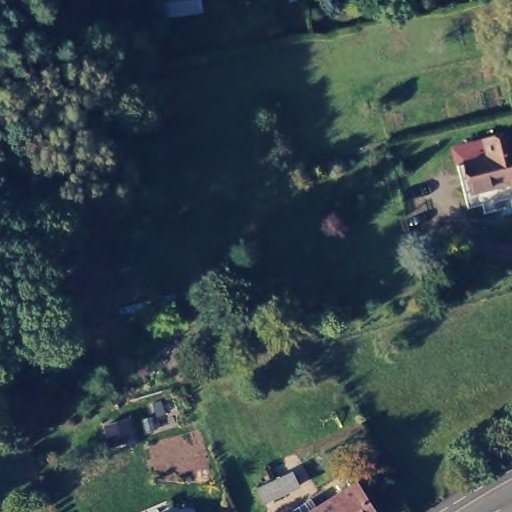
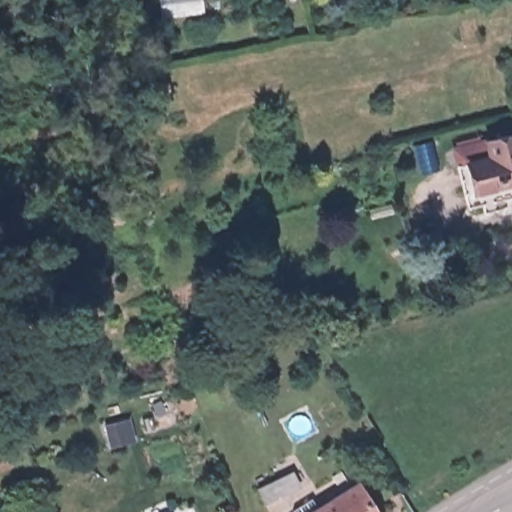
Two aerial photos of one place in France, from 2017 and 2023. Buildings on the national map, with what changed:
unchanged [(479,134),(512,128),(512,199),(511,200),(511,187),(470,191),(461,159),(483,152),(479,134)]
unchanged [(280,475),(291,469),(299,481),(287,488),(268,500),(260,488),(280,475)]
unchanged [(376,512),(316,512),(356,486),(376,512)]

